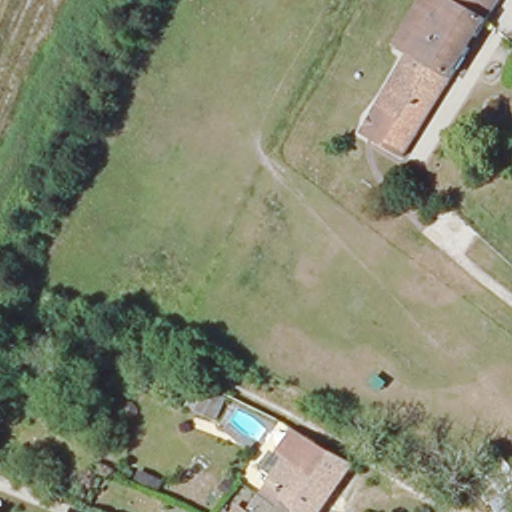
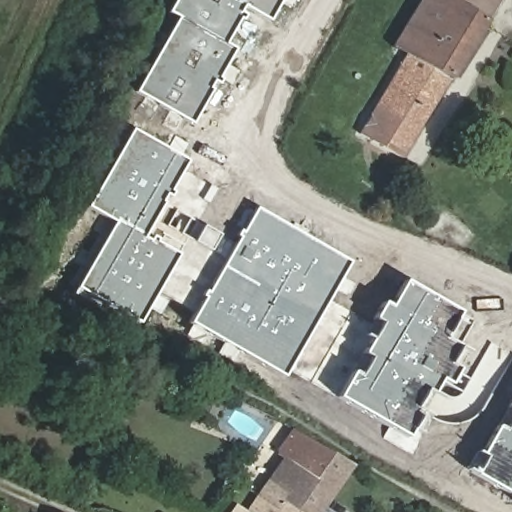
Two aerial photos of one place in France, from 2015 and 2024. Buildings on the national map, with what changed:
new [(181,16),(172,11),(178,0),(281,0),(270,19),(247,6),(225,44),(234,50),(193,121),(139,90),(181,16)]
unchanged [(359,135),(407,54),(394,45),(421,0),(501,0),(487,21),(452,80),(403,160),(359,135)]
new [(141,321),(79,287),(116,221),(90,206),(133,130),(188,161),(143,240),(149,243),(151,239),(179,255),(156,294),(169,301),(161,313),(149,306),(141,321)]
new [(349,260),(285,377),(191,322),(256,207),(349,260)]
new [(392,306),(406,282),(473,322),(451,363),(459,368),(450,384),(442,379),(408,437),(338,398),(372,339),(364,335),(382,301),(392,306)]
unchanged [(225,397),(216,420),(197,413),(207,390),(225,397)]
new [(509,407),(512,402),(512,409),(509,407)]
new [(477,472),(486,457),(482,455),(499,426),(504,430),(512,417),(512,493),(477,472)]
unchanged [(289,510),(266,495),(295,455),(287,450),(302,428),(308,432),(323,441),(333,447),(361,463),(339,496),(327,512),(309,512),(295,502),(289,510)]
unchanged [(254,511),(266,495),(289,510),(295,502),(309,512),(244,512),(248,507),(254,511)]
unchanged [(238,512),(233,512),(235,510),(238,512)]

